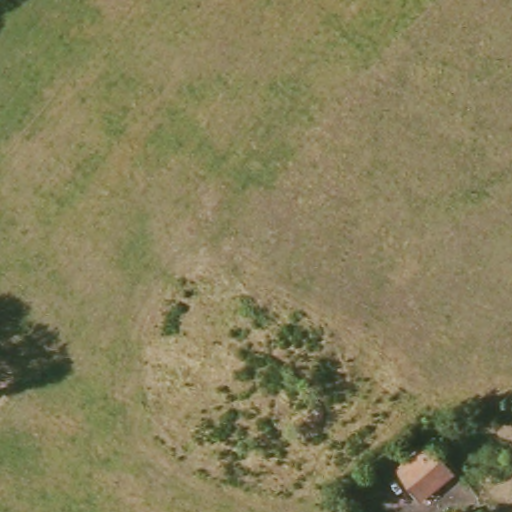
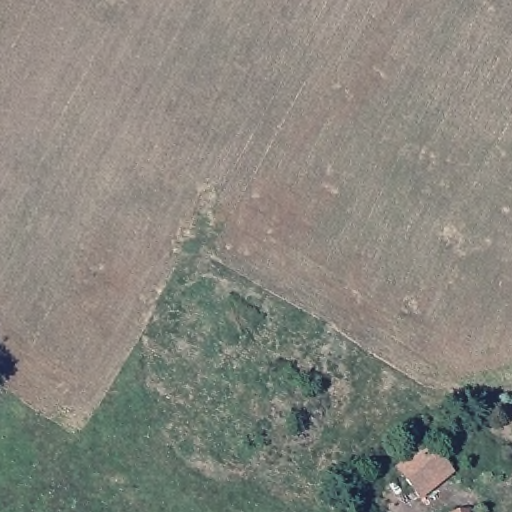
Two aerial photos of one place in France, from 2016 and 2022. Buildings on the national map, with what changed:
unchanged [(455,473),(423,501),(400,472),(431,447),(455,473)]
unchanged [(468,512),(454,512),(454,511),(467,509),(468,512)]

